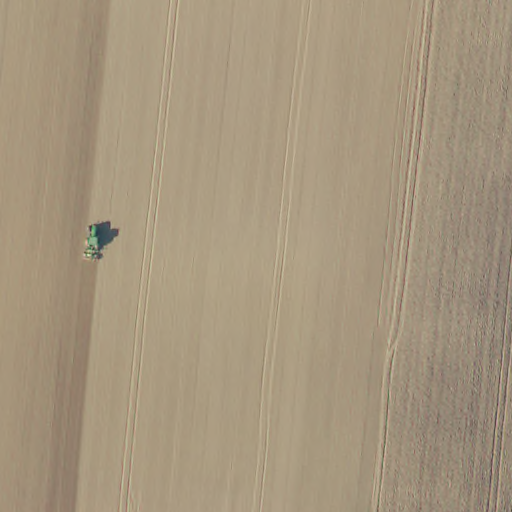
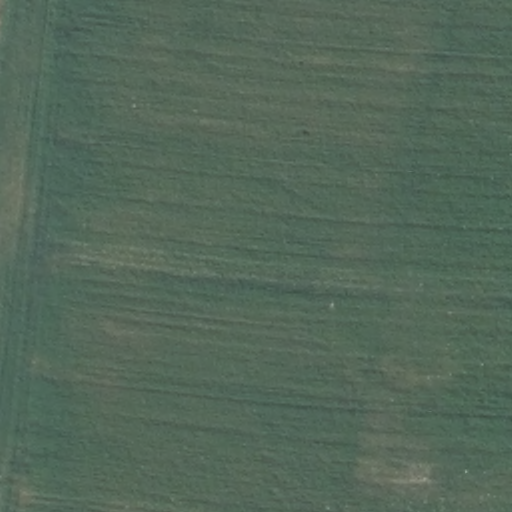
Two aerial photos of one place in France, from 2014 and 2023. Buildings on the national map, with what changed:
[]

